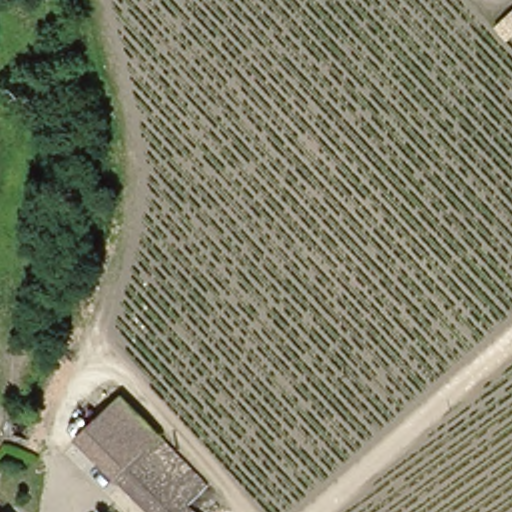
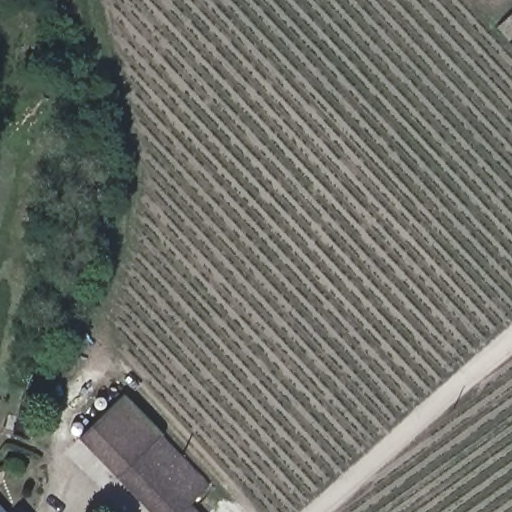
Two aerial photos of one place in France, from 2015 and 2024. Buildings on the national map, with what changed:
unchanged [(215,491),(206,500),(199,493),(196,496),(211,512),(153,512),(77,434),(121,391),(215,491)]

